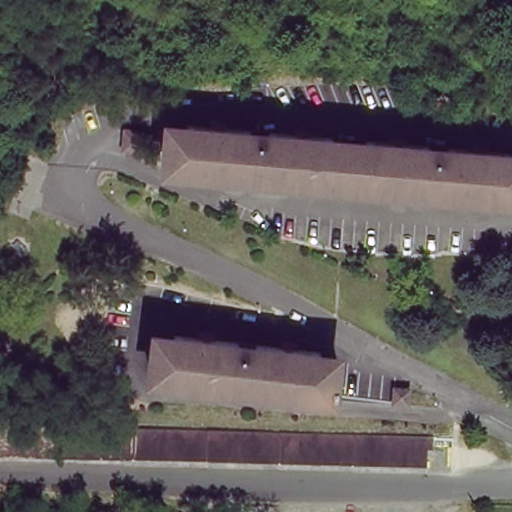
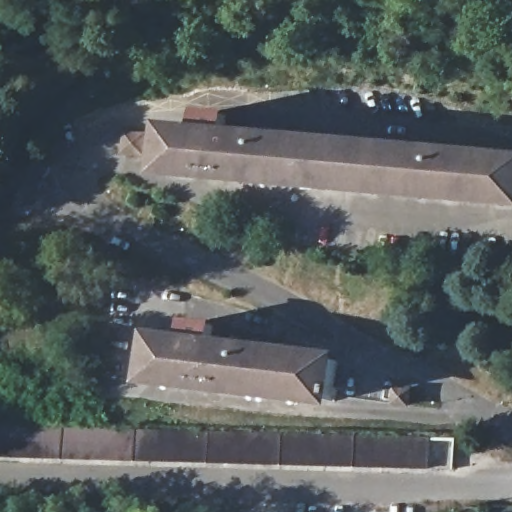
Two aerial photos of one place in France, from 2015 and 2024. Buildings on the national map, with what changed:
unchanged [(162,176),(166,129),(512,158),(512,202),(162,176)]
unchanged [(336,356),(335,384),(342,384),(342,396),(332,395),(332,404),(153,385),(157,341),(336,356)]
unchanged [(439,431),(438,443),(425,442),(422,463),(74,459),(0,457),(0,424),(439,431)]

